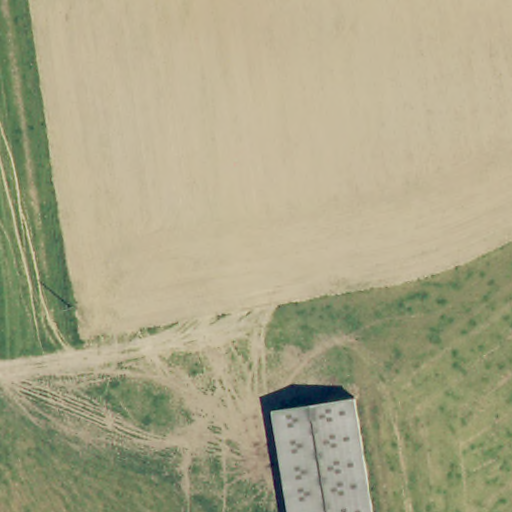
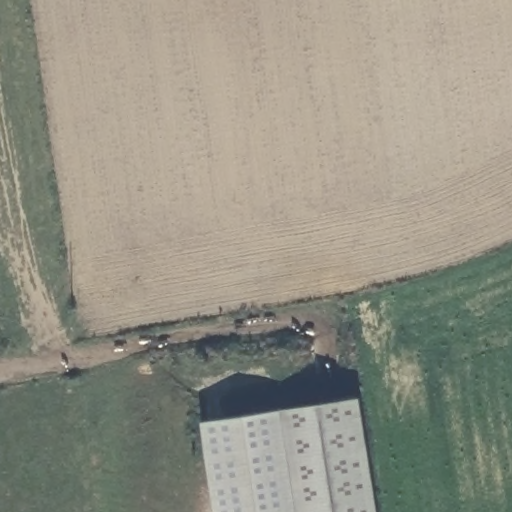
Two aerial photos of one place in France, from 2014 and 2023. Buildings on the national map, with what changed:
unchanged [(376,512),(296,512),(278,408),(357,397),(376,512)]
new [(296,512),(211,512),(199,422),(278,408),(296,512)]

